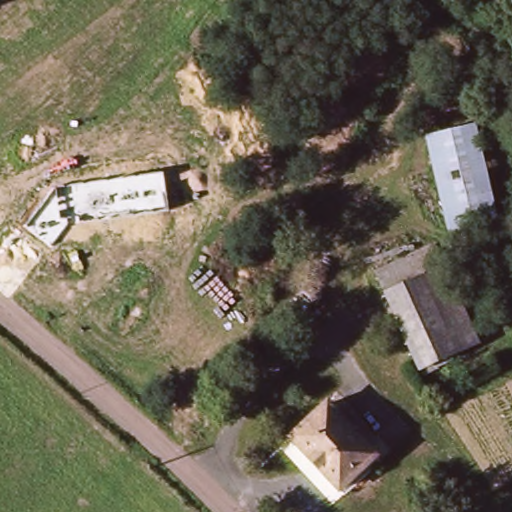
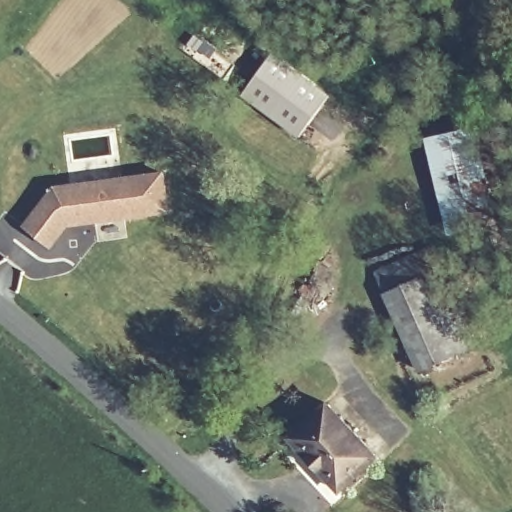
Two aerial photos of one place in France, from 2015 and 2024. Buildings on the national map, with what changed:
new [(332,94),(299,138),(242,95),(274,53),(332,94)]
unchanged [(506,221),(456,234),(432,138),(483,125),(506,221)]
new [(172,213),(71,227),(51,250),(22,226),(56,185),(166,169),(172,213)]
unchanged [(488,343),(467,354),(427,372),(391,293),(381,269),(420,254),(434,275),(455,265),(488,343)]
unchanged [(385,461),(348,492),(302,438),(336,406),(385,461)]

